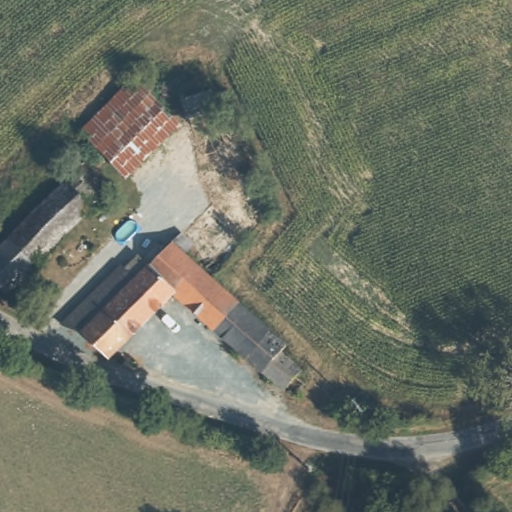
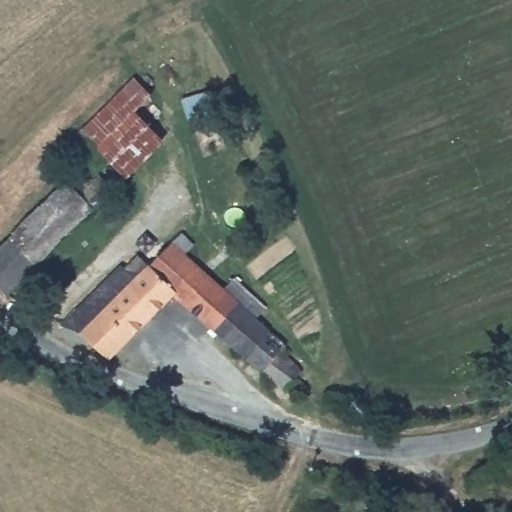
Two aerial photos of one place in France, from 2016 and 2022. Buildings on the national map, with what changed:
unchanged [(115,100),(136,80),(152,97),(179,125),(129,175),(84,129),(115,100)]
unchanged [(181,99),(215,89),(220,109),(188,117),(181,99)]
unchanged [(117,187),(10,290),(0,279),(0,246),(92,159),(117,187)]
unchanged [(117,263),(122,268),(132,255),(145,266),(179,230),(193,241),(182,254),(210,278),(281,340),(277,343),(297,362),(293,367),(302,375),(292,390),(280,380),(277,384),(166,290),(109,347),(105,352),(82,331),(60,321),(117,263)]

